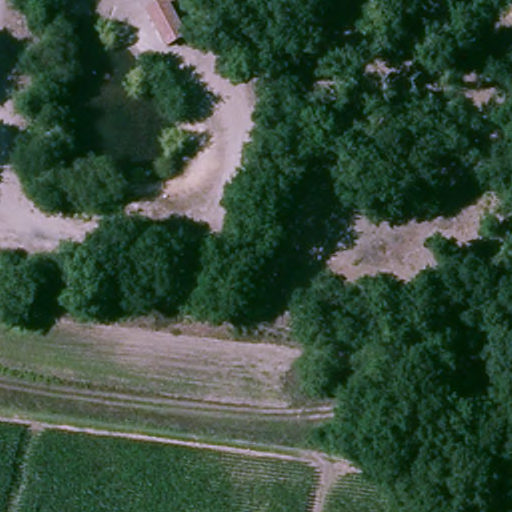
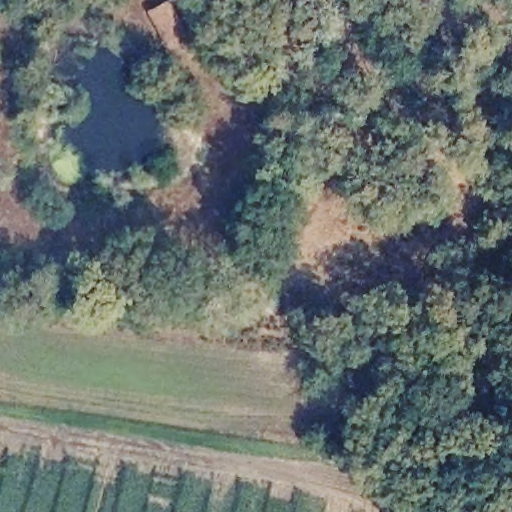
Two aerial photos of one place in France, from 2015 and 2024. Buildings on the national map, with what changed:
unchanged [(162,55),(144,15),(169,4),(187,43),(162,55)]

